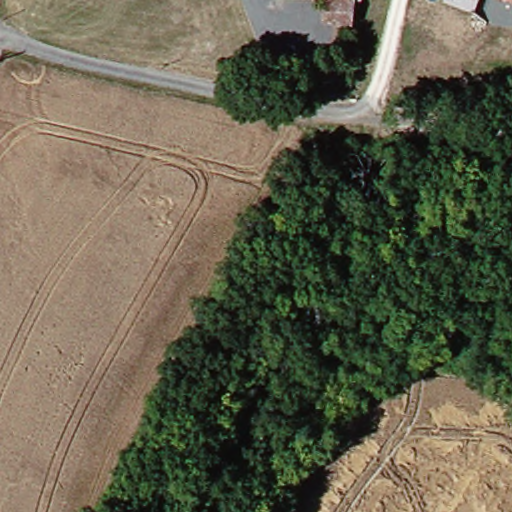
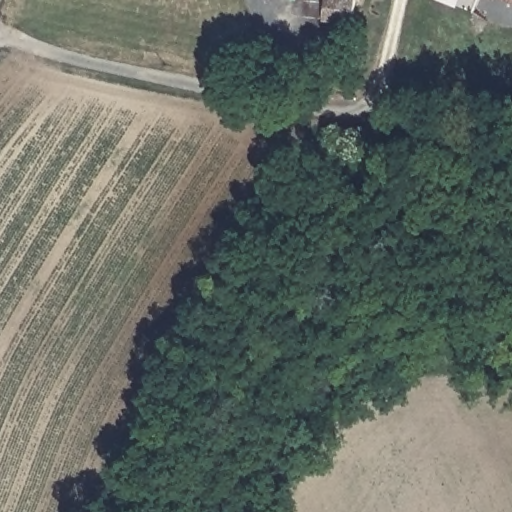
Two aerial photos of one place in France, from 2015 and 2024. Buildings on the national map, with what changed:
unchanged [(327,19),(328,0),(361,0),(361,21),(327,19)]
unchanged [(480,0),(478,6),(457,0),(480,0)]

